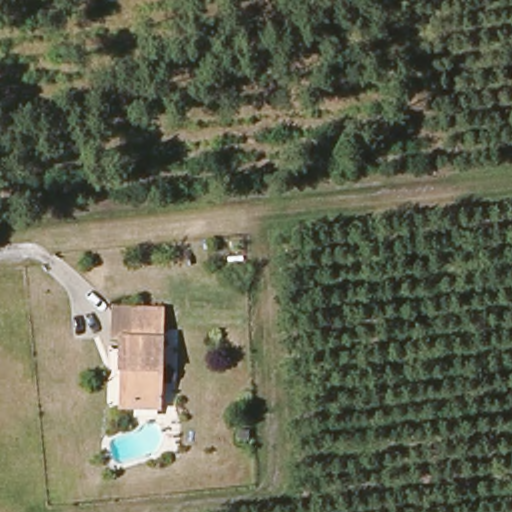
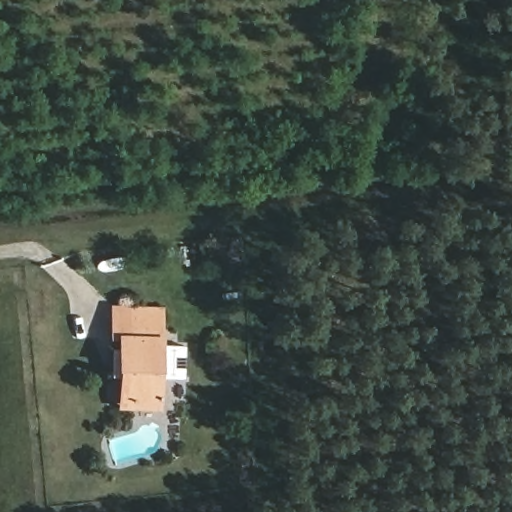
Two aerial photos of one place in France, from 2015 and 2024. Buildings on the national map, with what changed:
unchanged [(169,417),(110,421),(105,340),(90,341),(86,304),(158,297),(169,417)]

